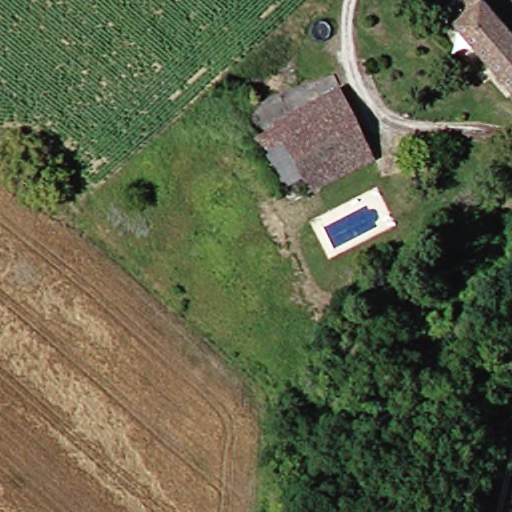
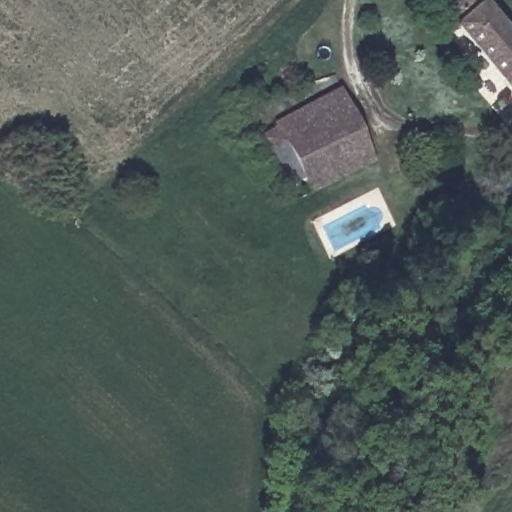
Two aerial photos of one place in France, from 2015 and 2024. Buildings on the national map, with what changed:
unchanged [(512,91),(445,18),(464,0),(481,0),(512,34),(512,91)]
unchanged [(297,183),(270,125),(339,91),(375,163),(304,197),(297,183)]
unchanged [(247,136),(270,125),(297,183),(275,193),(247,136)]

